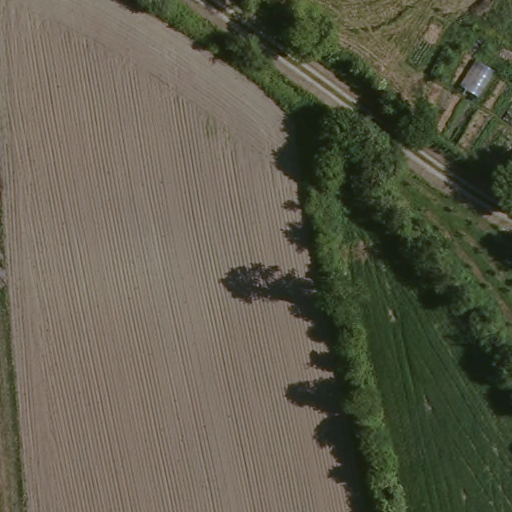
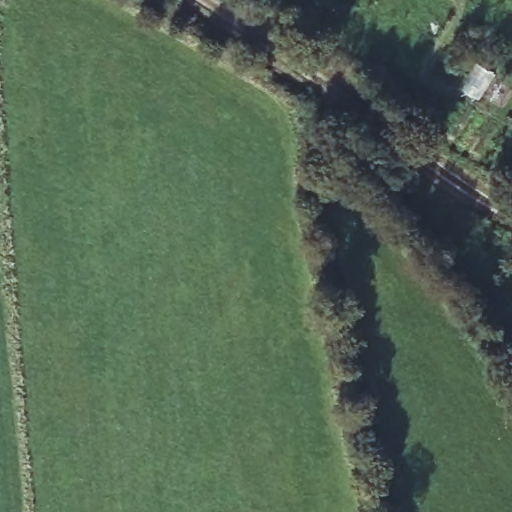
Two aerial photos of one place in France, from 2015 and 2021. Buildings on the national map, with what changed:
[]

